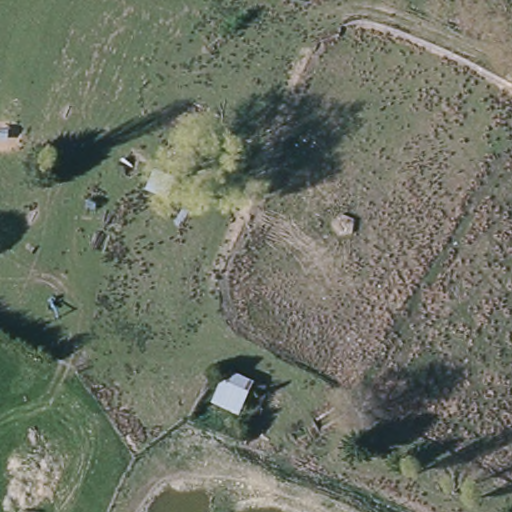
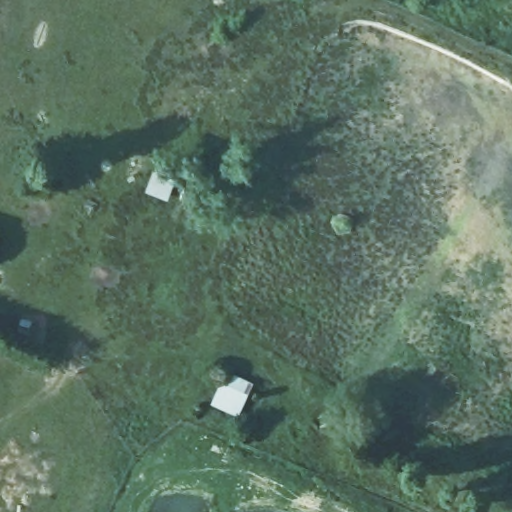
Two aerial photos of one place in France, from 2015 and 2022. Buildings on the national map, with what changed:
unchanged [(180,179),(171,204),(144,191),(155,168),(180,179)]
unchanged [(258,378),(240,420),(209,410),(230,368),(258,378)]

